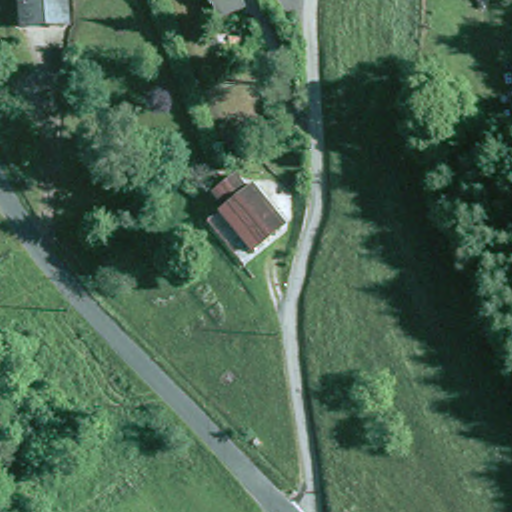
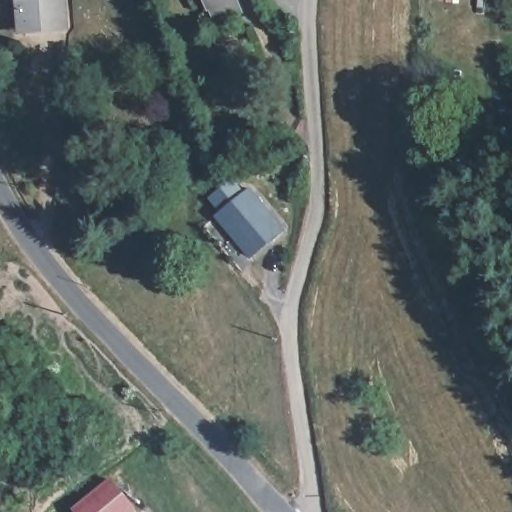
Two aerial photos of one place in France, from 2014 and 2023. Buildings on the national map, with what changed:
unchanged [(17,22),(16,0),(57,0),(59,25),(42,26),(17,28),(17,22)]
unchanged [(230,9),(210,16),(204,0),(226,0),(230,9)]
unchanged [(210,220),(217,214),(203,202),(222,182),(236,194),(241,188),(276,223),(246,255),(210,220)]
new [(135,509),(131,512),(80,512),(76,508),(110,479),(135,509)]

